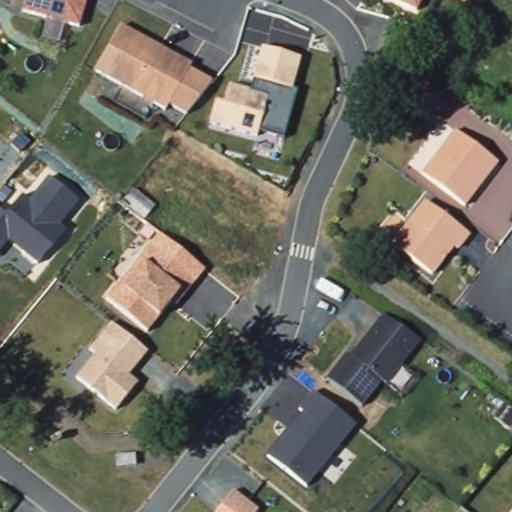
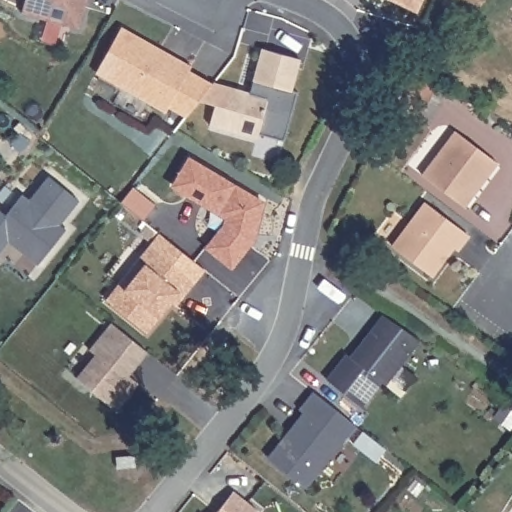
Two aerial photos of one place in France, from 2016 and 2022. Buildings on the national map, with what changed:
unchanged [(79,21),(21,8),(23,0),(84,0),(79,21)]
unchanged [(416,10),(392,0),(421,0),(416,10)]
unchanged [(191,61),(165,109),(96,70),(121,24),(191,61)]
unchanged [(215,102),(224,104),(229,87),(249,92),(262,49),(298,59),(290,90),(296,92),(284,140),(257,133),(256,138),(208,126),(215,102)]
unchanged [(186,70),(211,84),(187,116),(167,106),(186,70)]
new [(405,74),(435,89),(428,102),(422,115),(392,101),(399,87),(405,74)]
unchanged [(499,160),(464,204),(421,171),(456,127),(499,160)]
new [(262,204),(254,240),(232,267),(207,248),(225,226),(229,220),(217,212),(173,184),(190,157),(262,204)]
unchanged [(80,199),(62,225),(65,229),(37,264),(6,242),(0,249),(0,210),(6,215),(24,192),(30,198),(48,175),(80,199)]
unchanged [(468,232),(457,247),(453,244),(430,272),(390,244),(424,197),(468,232)]
unchanged [(105,300),(149,242),(197,282),(175,308),(169,303),(158,316),(146,333),(105,300)]
unchanged [(385,312),(421,340),(421,341),(361,404),(326,373),(385,312)]
unchanged [(76,378),(95,356),(88,351),(112,322),(147,352),(127,377),(137,385),(114,410),(76,378)]
unchanged [(265,457),(318,393),(355,423),(304,487),(265,457)]
unchanged [(257,510),(255,512),(215,512),(232,490),(257,510)]

